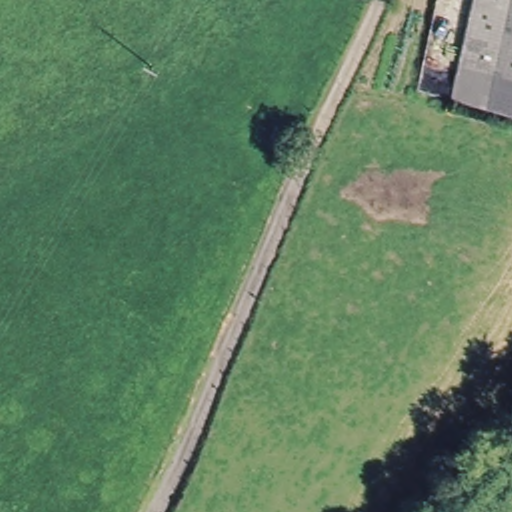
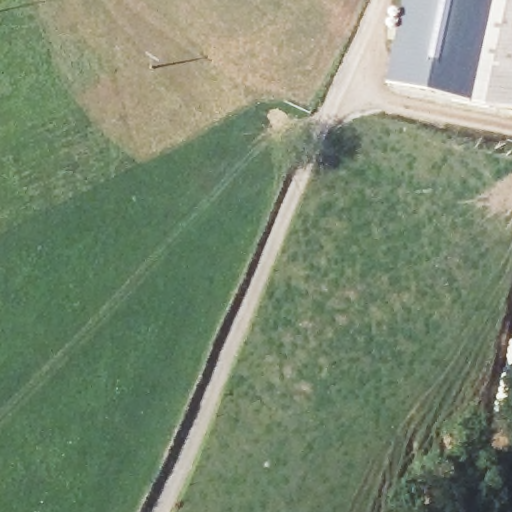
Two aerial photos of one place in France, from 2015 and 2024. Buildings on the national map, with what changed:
new [(388,83),(406,0),(512,0),(512,113),(388,83)]
demolished [(454,64),(469,0),(512,0),(512,76),(454,64)]
demolished [(512,76),(512,118),(446,103),(454,64),(512,76)]

